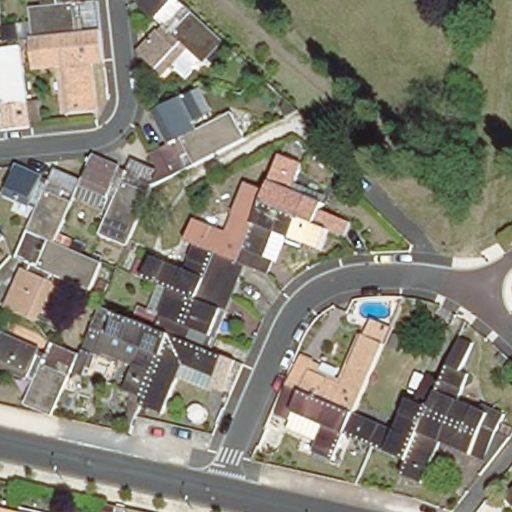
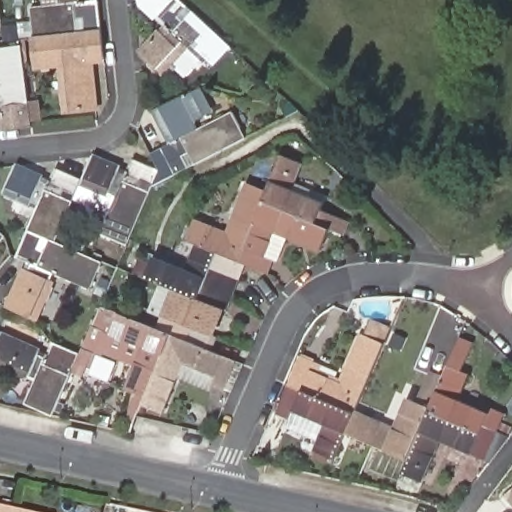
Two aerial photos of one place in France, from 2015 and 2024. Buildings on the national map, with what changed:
unchanged [(0,25),(0,0),(3,24),(0,25)]
unchanged [(101,1),(106,60),(86,63),(86,70),(94,70),(96,110),(67,113),(64,73),(68,72),(67,64),(36,66),(32,8),(64,4),(63,0),(81,0),(81,3),(101,1)]
unchanged [(225,46),(205,69),(199,64),(185,79),(172,69),(161,79),(149,69),(144,63),(139,59),(159,38),(164,42),(170,36),(156,23),(176,0),(225,46)]
unchanged [(32,133),(3,135),(1,116),(0,117),(0,54),(23,51),(32,133)]
unchanged [(182,174),(172,179),(160,154),(179,144),(176,138),(169,141),(156,114),(196,94),(210,120),(191,130),(194,137),(232,118),(245,143),(182,174)]
unchanged [(126,248),(101,237),(117,199),(110,196),(108,202),(81,189),(56,246),(102,267),(90,294),(51,277),(48,284),(51,286),(35,325),(8,313),(24,274),(30,277),(33,269),(16,262),(40,208),(31,204),(30,209),(4,198),(16,170),(42,181),(40,187),(48,190),(56,172),(83,184),(94,161),(120,173),(118,178),(125,181),(133,163),(159,174),(153,188),(126,248)]
unchanged [(244,369),(232,397),(213,390),(216,381),(183,368),(163,417),(140,407),(143,399),(123,392),(140,350),(108,337),(117,317),(157,334),(173,294),(145,282),(153,262),(186,274),(196,249),(186,245),(194,225),(227,238),(246,189),(268,198),(283,161),(304,169),(301,176),(329,198),(325,209),(322,215),(351,227),(345,242),(331,236),(323,254),(277,236),(265,263),(275,266),(269,279),(246,269),(227,314),(222,313),(212,340),(206,353),(244,369)]
unchanged [(0,238),(0,236),(1,237),(0,238)]
unchanged [(38,382),(31,379),(28,384),(0,371),(0,338),(2,339),(41,356),(38,363),(46,366),(54,347),(80,358),(53,420),(27,408),(38,382)]
unchanged [(288,424),(276,419),(300,362),(313,367),(310,374),(342,389),(364,339),(385,348),(354,418),(394,436),(409,403),(417,406),(430,378),(442,383),(461,342),(475,348),(464,374),(471,378),(460,404),(491,418),(485,431),(499,437),(487,465),(441,445),(421,490),(399,480),(405,466),(345,439),(333,466),(311,456),(317,443),(286,429),(288,424)]
unchanged [(512,489),(512,508),(507,512),(506,512),(497,502),(512,489)]

